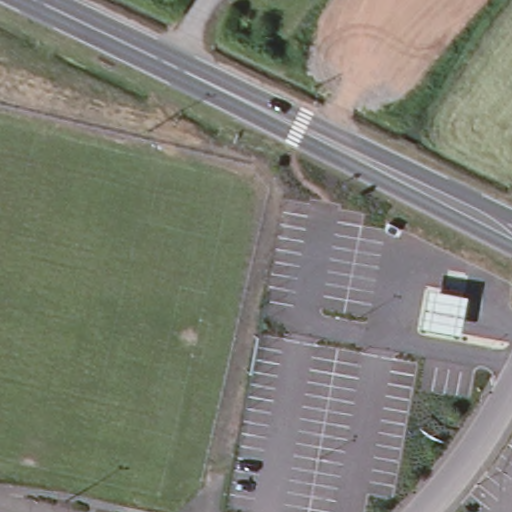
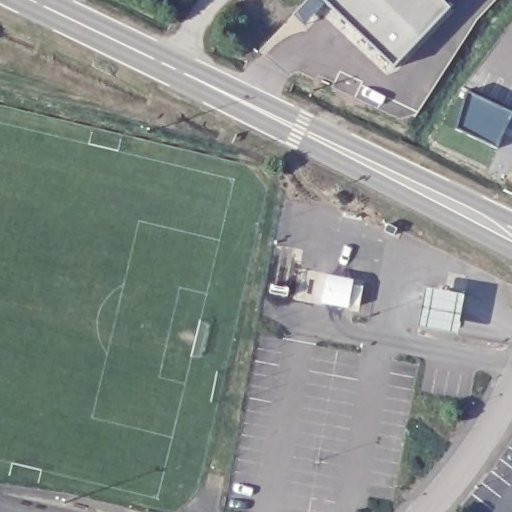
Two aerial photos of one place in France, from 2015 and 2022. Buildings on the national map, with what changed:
new [(394,67),(322,0),(441,0),(450,9),(394,67)]
unchanged [(424,286),(463,293),(455,332),(416,324),(424,286)]

